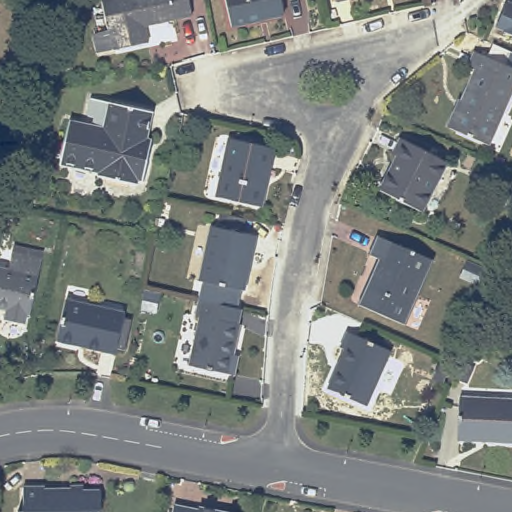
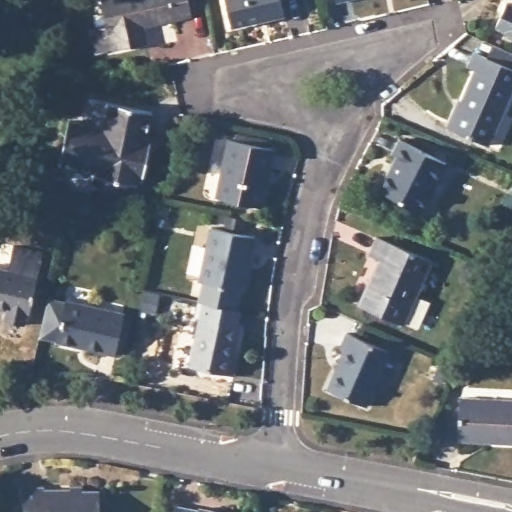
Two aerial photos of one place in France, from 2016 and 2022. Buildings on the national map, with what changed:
unchanged [(88,36),(106,32),(100,6),(126,1),(126,0),(185,0),(190,22),(142,32),(146,48),(112,56),(111,51),(93,56),(88,36)]
unchanged [(282,10),(230,22),(224,0),(280,0),(282,10)]
unchanged [(334,4),(333,0),(350,0),(334,4)]
unchanged [(503,34),(505,32),(495,29),(506,4),(511,6),(512,4),(512,37),(503,34)]
unchanged [(447,127),(472,70),(467,67),(472,52),(512,69),(512,89),(487,145),(447,127)]
unchanged [(151,157),(146,182),(142,181),(140,186),(100,178),(101,173),(63,166),(72,127),(99,132),(102,121),(91,119),(96,100),(155,112),(150,139),(155,141),(151,157)]
unchanged [(216,192),(229,135),(272,144),(259,202),(216,192)]
unchanged [(383,197),(399,162),(396,160),(403,145),(449,165),(428,216),(383,197)]
unchanged [(220,230),(223,216),(244,220),(241,234),(253,237),(243,291),(239,291),(235,310),(228,308),(217,306),(198,302),(202,283),(199,282),(209,228),(220,230)]
unchanged [(358,306),(375,264),(365,260),(376,237),(430,262),(402,325),(358,306)]
unchanged [(28,316),(26,316),(24,324),(2,320),(4,310),(0,309),(0,267),(7,268),(10,251),(12,244),(41,249),(39,256),(42,257),(29,316),(28,316)]
unchanged [(55,340),(64,298),(122,311),(114,352),(55,340)]
unchanged [(188,366),(198,317),(194,317),(197,302),(198,302),(217,306),(228,308),(235,310),(238,310),(239,311),(236,326),(238,326),(232,356),(236,357),(232,375),(188,366)]
unchanged [(326,390),(344,349),(339,347),(345,332),(389,351),(365,406),(326,390)]
unchanged [(457,442),(459,396),(512,399),(512,444),(457,442)]
unchanged [(98,490),(98,512),(17,512),(17,511),(23,510),(22,486),(44,486),(66,485),(82,485),(82,491),(98,490)]
unchanged [(196,503),(196,502),(242,510),(242,512),(169,512),(172,499),(196,503)]

